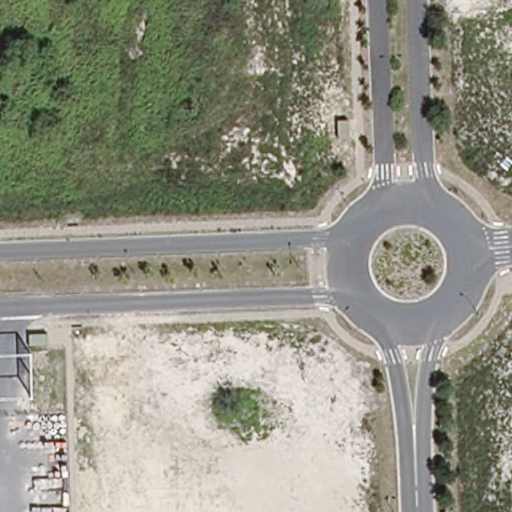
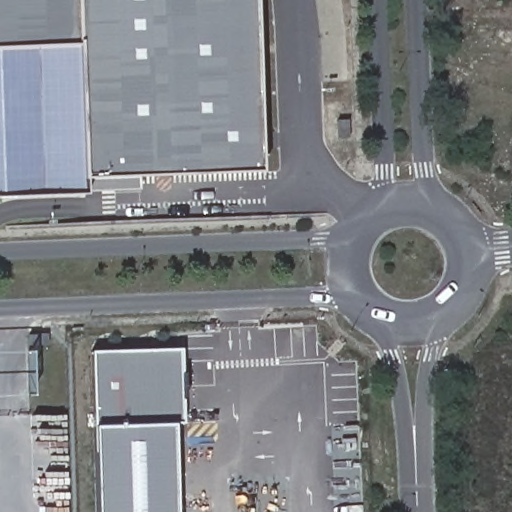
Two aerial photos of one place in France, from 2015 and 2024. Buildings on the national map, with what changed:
new [(141,172),(141,188),(91,192),(0,195),(0,0),(257,0),(263,165),(141,172)]
new [(351,119),(351,137),(341,137),(340,119),(351,119)]
new [(90,351),(180,347),(182,424),(173,423),(175,512),(97,512),(93,428),(90,351)]

